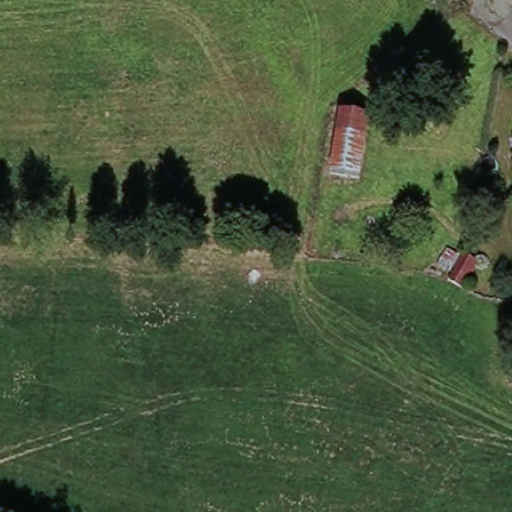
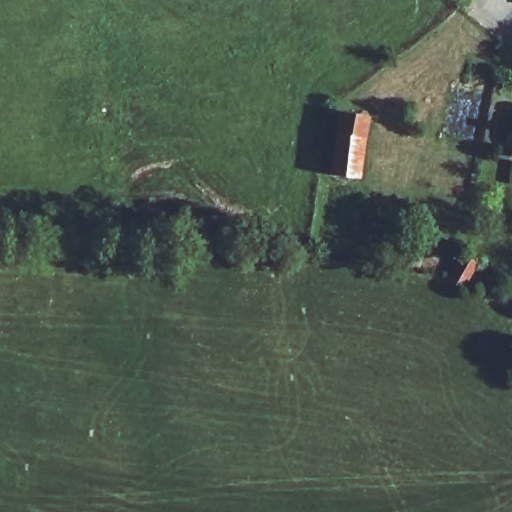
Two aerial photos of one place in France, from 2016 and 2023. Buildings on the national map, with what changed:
unchanged [(341,115),(365,120),(355,172),(352,181),(346,181),(328,177),(341,115)]
unchanged [(470,262),(482,267),(470,290),(458,286),(470,262)]

